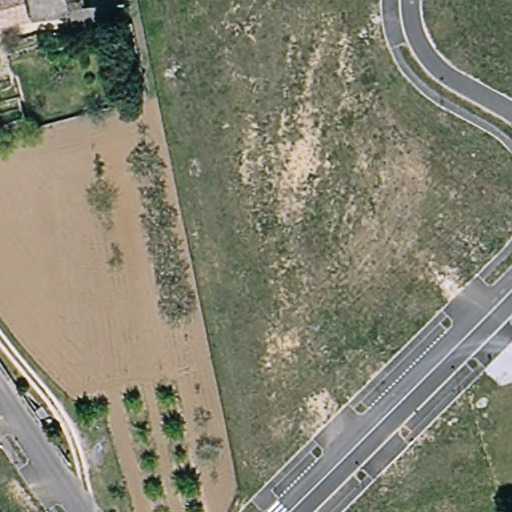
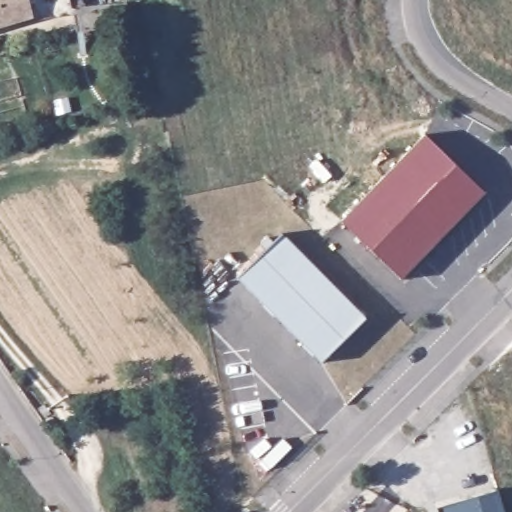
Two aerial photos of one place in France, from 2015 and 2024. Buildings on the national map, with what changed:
unchanged [(65,0),(68,13),(0,28),(0,0),(65,0)]
unchanged [(109,2),(116,36),(87,44),(79,8),(109,2)]
new [(426,136),(486,194),(402,280),(342,223),(426,136)]
new [(279,230),(364,315),(319,360),(235,274),(279,230)]
new [(438,509),(498,490),(505,512),(438,512),(438,509)]

